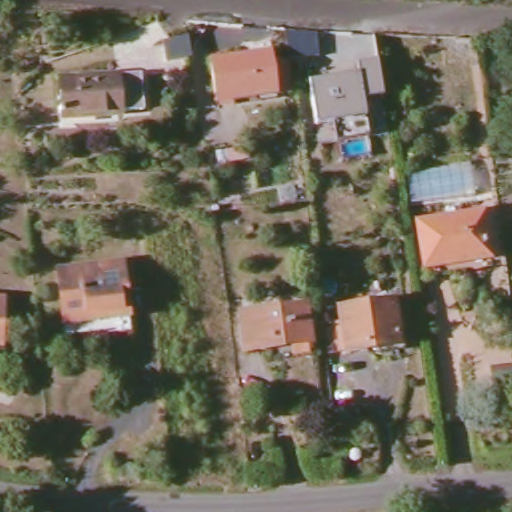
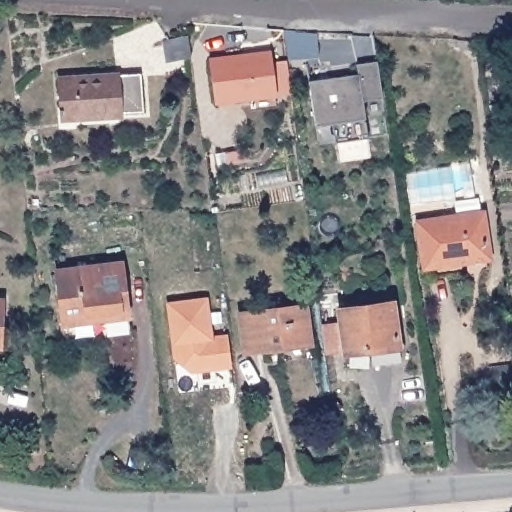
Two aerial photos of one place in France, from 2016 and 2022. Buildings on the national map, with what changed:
unchanged [(164,54),(160,33),(183,29),(187,50),(164,54)]
unchanged [(203,64),(239,59),(262,55),(262,62),(265,70),(278,68),(282,97),(210,107),(203,64)]
unchanged [(385,97),(365,100),(370,141),(336,145),(333,122),(317,125),(312,80),(358,72),(357,64),(380,60),(385,97)]
unchanged [(100,120),(98,112),(59,117),(55,79),(117,72),(135,70),(140,109),(122,112),(122,117),(100,120)]
unchanged [(453,254),(454,257),(423,263),(415,219),(480,210),(485,247),(453,254)]
unchanged [(58,320),(57,267),(116,265),(118,318),(58,320)]
new [(192,373),(172,359),(171,346),(165,302),(207,296),(212,335),(227,333),(231,368),(192,373)]
unchanged [(345,350),(340,307),(395,301),(399,344),(345,350)]
unchanged [(280,338),(281,343),(242,348),(238,312),(302,303),(305,335),(280,338)]

